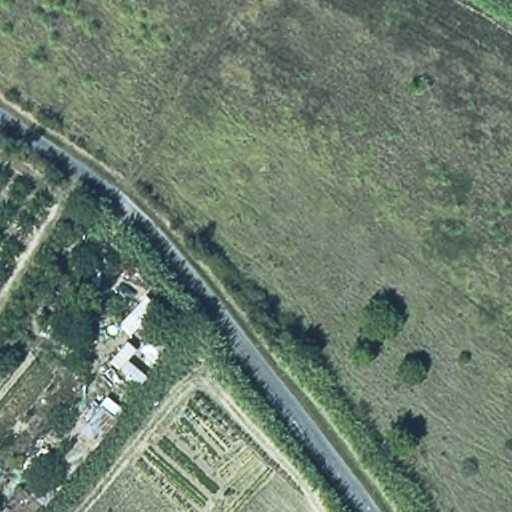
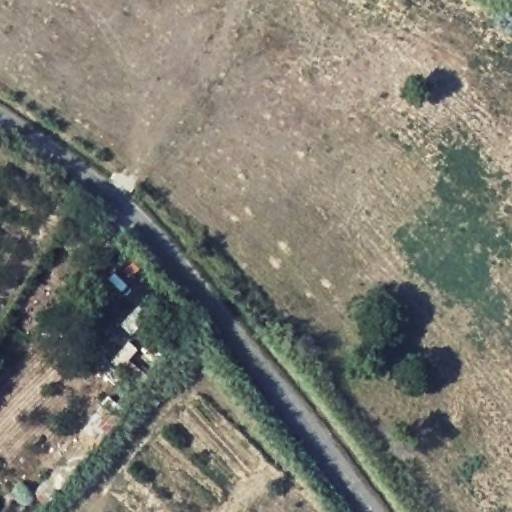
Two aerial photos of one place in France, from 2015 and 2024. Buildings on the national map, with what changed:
unchanged [(184,339),(166,362),(143,340),(158,323),(184,339)]
unchanged [(136,353),(129,359),(149,377),(139,392),(105,363),(121,343),(136,353)]
unchanged [(119,423),(88,456),(73,442),(100,406),(119,423)]

